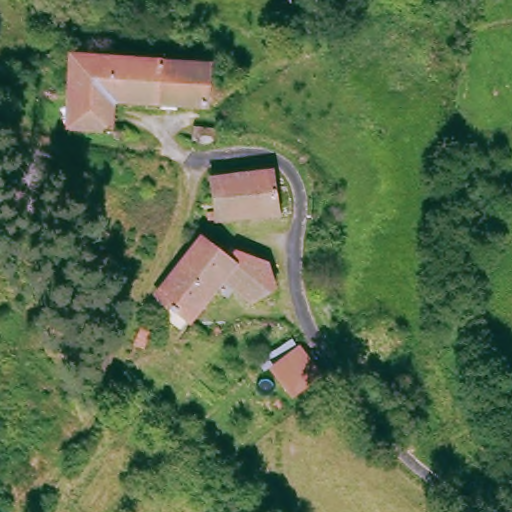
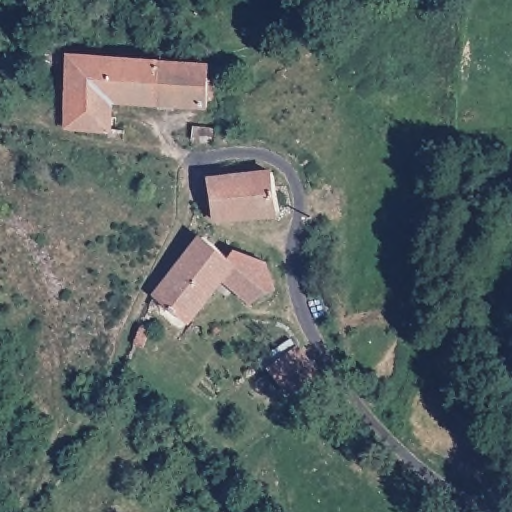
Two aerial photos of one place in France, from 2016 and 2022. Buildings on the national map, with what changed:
unchanged [(199,102),(105,97),(103,125),(63,122),(65,85),(66,52),(80,52),(202,60),(201,101),(199,102)]
unchanged [(272,170),(274,210),(212,215),(207,175),(272,170)]
unchanged [(206,239),(229,258),(236,248),(266,261),(274,286),(254,296),(225,272),(187,317),(157,293),(206,239)]
unchanged [(285,392),(265,368),(288,350),(307,372),(285,392)]

